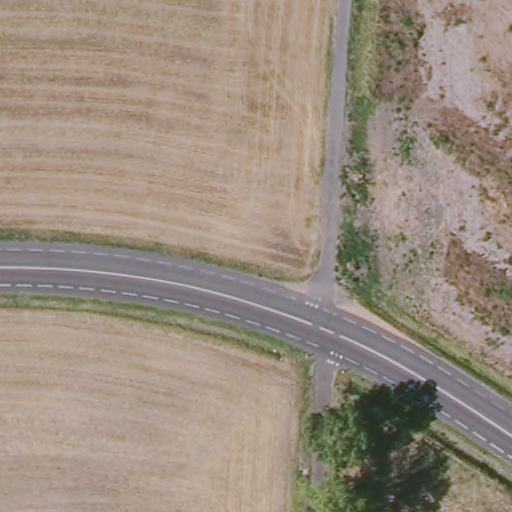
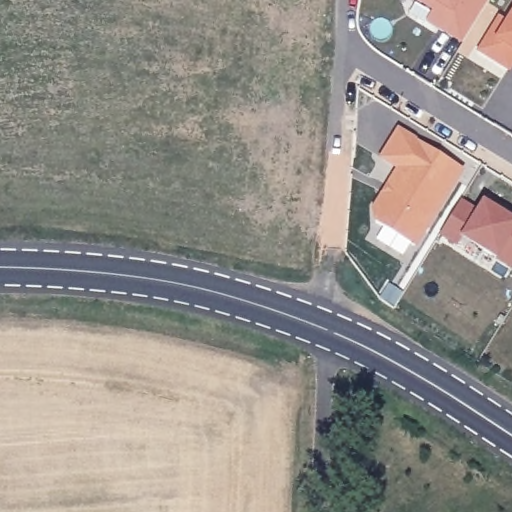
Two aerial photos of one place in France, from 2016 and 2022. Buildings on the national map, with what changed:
new [(498,16),(506,21),(512,10),(512,69),(510,72),(475,51),(498,16)]
new [(463,170),(416,246),(374,223),(372,208),(395,169),(380,158),(397,128),(463,170)]
new [(496,260),(460,238),(457,247),(440,236),(462,202),(477,210),(482,201),(499,211),(502,206),(512,212),(512,270),(496,260)]

